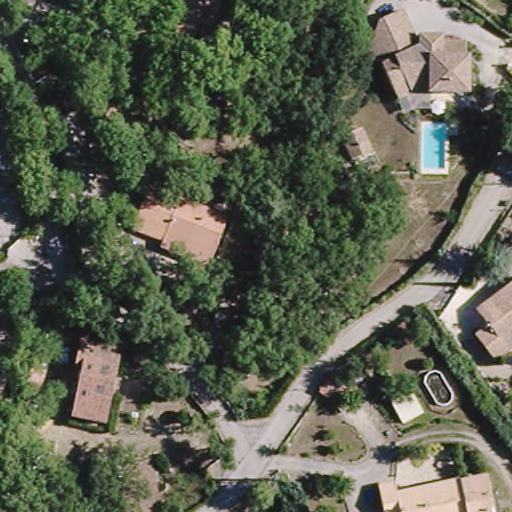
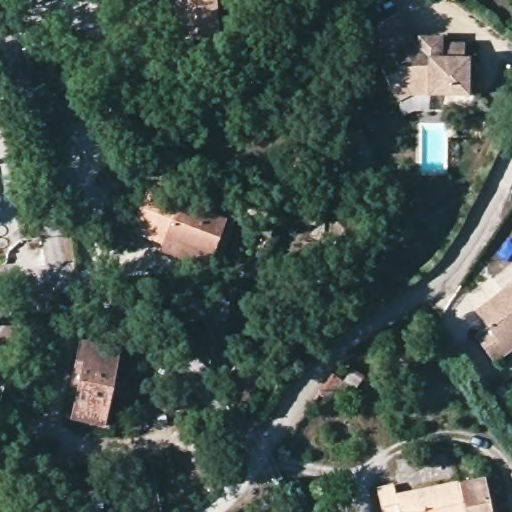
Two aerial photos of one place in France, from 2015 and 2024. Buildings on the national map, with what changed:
unchanged [(213,44),(172,48),(168,0),(210,0),(213,44)]
unchanged [(464,100),(428,100),(393,105),(379,68),(367,60),(378,25),(406,19),(415,42),(444,41),(445,51),(465,51),(464,100)]
unchanged [(139,123),(122,152),(99,138),(106,127),(94,120),(106,104),(139,123)]
unchanged [(372,158),(348,167),(336,139),(360,129),(372,158)]
unchanged [(139,235),(152,189),(169,196),(231,218),(213,271),(169,257),(171,248),(152,240),(139,235)]
unchanged [(504,364),(485,336),(497,325),(484,307),(512,283),(512,357),(504,364)]
unchanged [(101,417),(73,409),(85,380),(73,374),(86,330),(127,344),(101,417)]
unchanged [(359,382),(337,411),(316,397),(341,367),(359,382)]
unchanged [(1,489),(0,490),(0,464),(3,464),(1,489)]
unchanged [(398,483),(400,492),(485,479),(490,512),(380,512),(375,487),(398,483)]
unchanged [(113,512),(90,512),(79,492),(96,480),(113,512)]
unchanged [(129,512),(113,512),(126,505),(129,512)]

